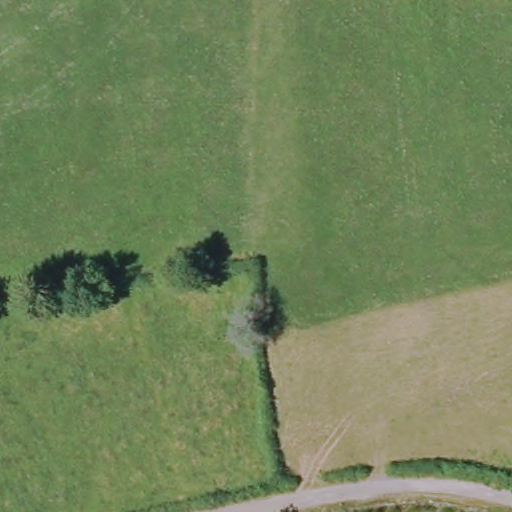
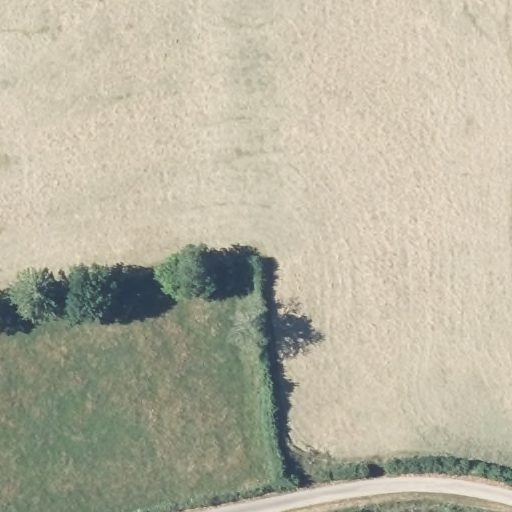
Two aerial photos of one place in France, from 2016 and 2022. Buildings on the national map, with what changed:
[]

